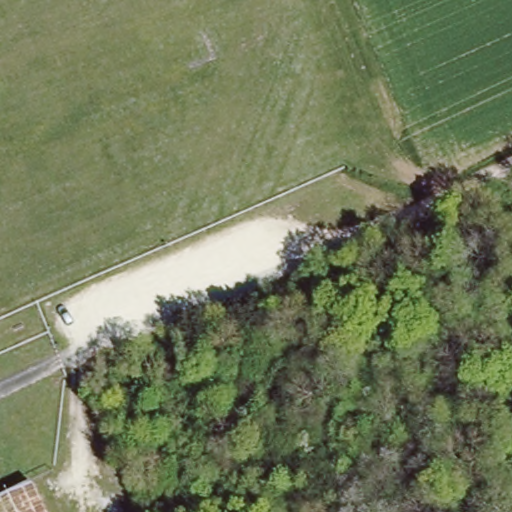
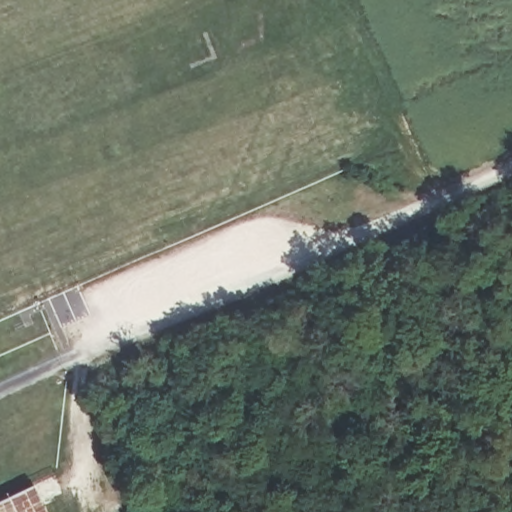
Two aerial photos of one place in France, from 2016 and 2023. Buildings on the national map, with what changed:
unchanged [(30,488),(41,512),(0,512),(0,502),(30,488)]

